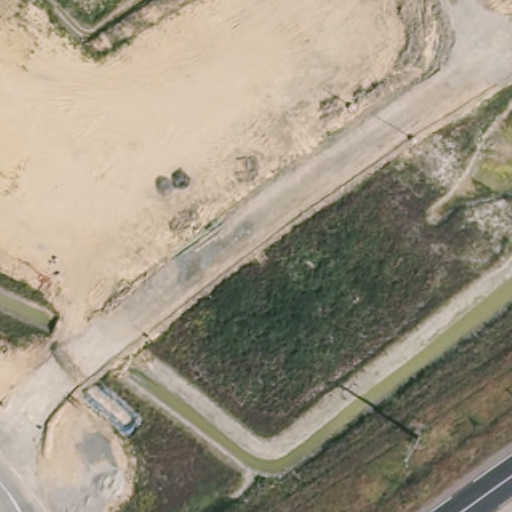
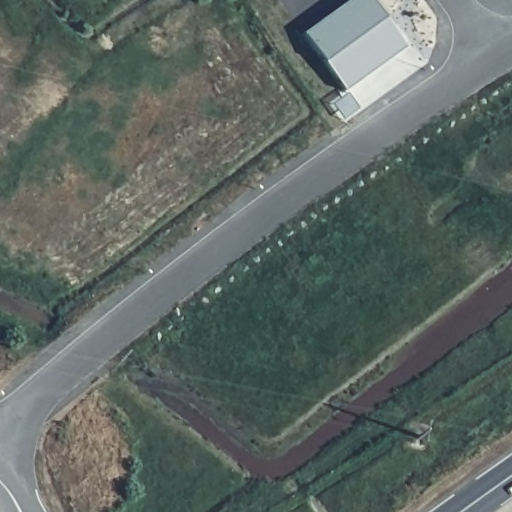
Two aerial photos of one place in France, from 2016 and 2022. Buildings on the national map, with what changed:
new [(349,0),(370,0),(405,47),(343,91),(303,34),(349,0)]

